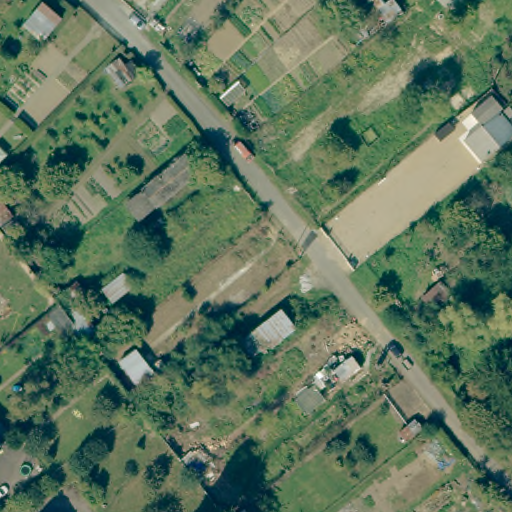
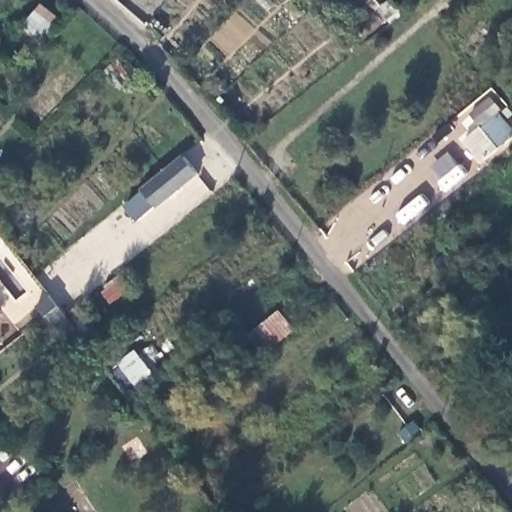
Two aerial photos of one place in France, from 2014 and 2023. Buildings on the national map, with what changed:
unchanged [(397,6),(375,24),(353,0),(392,0),(397,6)]
unchanged [(42,2),(59,19),(40,43),(22,26),(42,2)]
unchanged [(467,80),(477,96),(452,113),(445,97),(467,80)]
unchanged [(468,110),(489,95),(500,109),(478,124),(468,110)]
unchanged [(481,127),(497,114),(511,132),(494,145),(481,127)]
unchanged [(126,202),(185,154),(197,169),(156,203),(154,202),(137,217),(126,202)]
unchanged [(60,305),(65,311),(74,302),(116,357),(93,376),(59,330),(46,335),(37,322),(60,305)]
unchanged [(250,336),(280,312),(292,327),(261,351),(250,336)]

